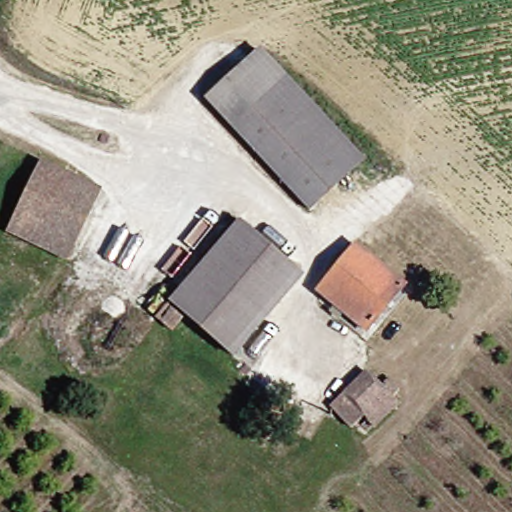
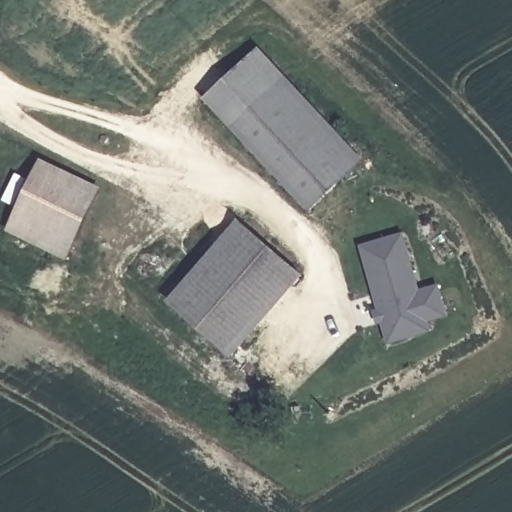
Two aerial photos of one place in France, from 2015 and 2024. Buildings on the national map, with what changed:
unchanged [(205,107),(255,55),(283,83),(348,145),(362,161),(310,211),(270,171),(230,130),(205,107)]
unchanged [(100,189),(69,265),(9,242),(40,167),(100,189)]
unchanged [(240,229),(300,279),(232,359),(173,310),(217,257),(240,229)]
new [(360,246),(405,233),(420,290),(440,285),(449,317),(430,322),(432,332),(388,345),(360,246)]
demolished [(365,337),(314,297),(352,251),(405,289),(365,337)]
demolished [(365,415),(352,428),(328,415),(361,375),(370,382),(373,375),(386,384),(380,391),(395,403),(377,421),(365,415)]

